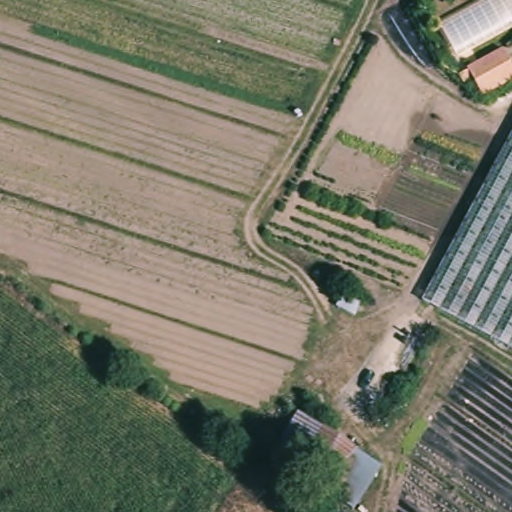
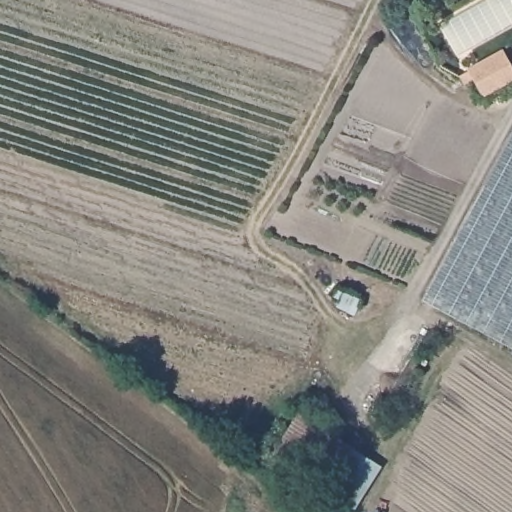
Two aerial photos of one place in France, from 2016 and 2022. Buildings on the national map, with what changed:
unchanged [(465,74),(464,73),(496,48),(512,71),(512,73),(481,96),(470,81),(462,87),(457,80),(465,74)]
unchanged [(415,303),(512,121),(512,358),(415,303)]
unchanged [(296,413),(333,435),(305,476),(271,451),(296,413)]
unchanged [(305,476),(333,435),(356,451),(329,493),(305,476)]
unchanged [(383,470),(353,511),(329,493),(356,451),(383,470)]

